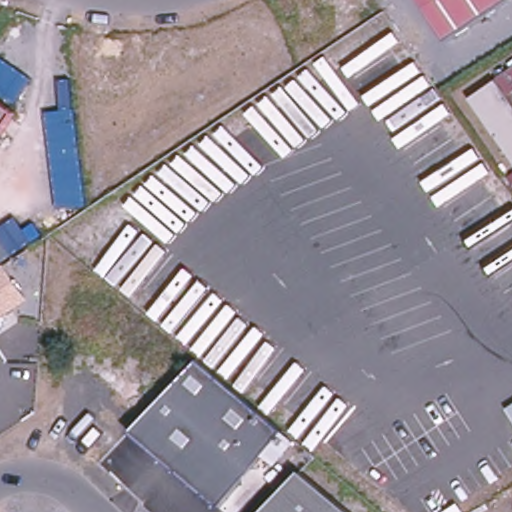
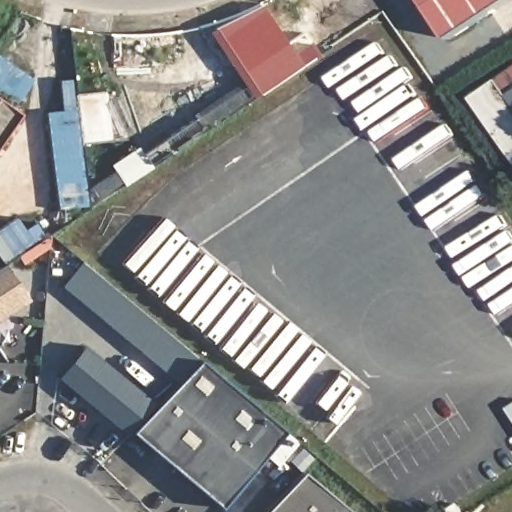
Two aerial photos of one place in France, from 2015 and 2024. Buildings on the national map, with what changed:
unchanged [(421,0),(509,0),(447,40),(421,0)]
new [(310,41),(319,56),(251,100),(207,33),(260,2),(292,53),(310,41)]
unchanged [(512,101),(512,157),(468,98),(496,79),(512,101)]
new [(45,114),(62,111),(58,82),(71,81),(86,207),(58,211),(45,114)]
unchanged [(0,137),(0,101),(17,113),(0,137)]
new [(198,359),(178,384),(63,287),(83,262),(198,359)]
unchanged [(0,318),(0,268),(4,265),(28,300),(0,318)]
new [(125,436),(56,378),(82,346),(152,404),(125,436)]
unchanged [(269,461),(228,512),(223,512),(133,435),(202,362),(289,437),(288,438),(298,446),(279,469),(269,461)]
unchanged [(303,471),(353,512),(264,512),(270,506),(303,471)]

